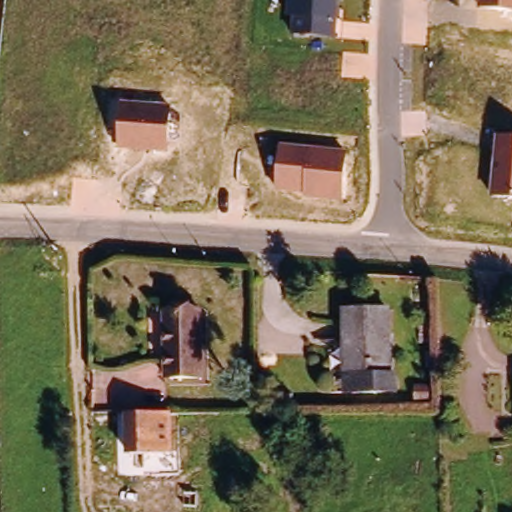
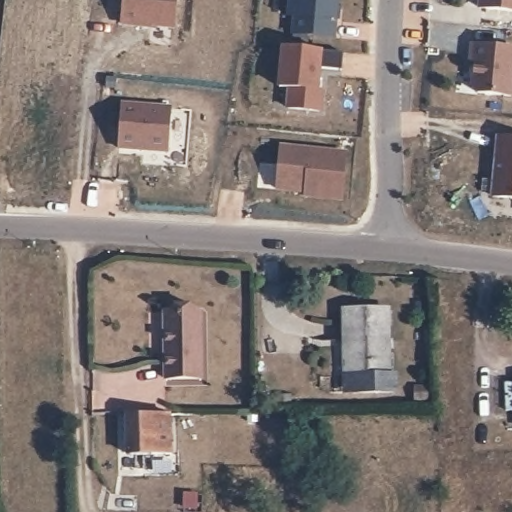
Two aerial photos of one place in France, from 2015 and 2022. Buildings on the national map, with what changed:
new [(176,30),(121,25),(124,0),(179,0),(176,30)]
unchanged [(336,37),(291,32),(293,15),(286,14),(288,0),(339,0),(336,37)]
unchanged [(476,8),(477,0),(512,0),(512,11),(476,8)]
new [(512,49),(512,96),(473,93),(475,64),(468,62),(471,44),(512,49)]
new [(324,51),(341,52),(339,69),(323,68),(321,90),(326,90),(324,111),(285,110),(284,88),(278,87),(283,48),(324,51)]
unchanged [(168,152),(115,147),(120,100),(171,105),(168,152)]
unchanged [(491,199),(494,135),(512,136),(512,201),(491,199)]
unchanged [(344,203),(303,197),(303,193),(274,190),(279,144),(348,151),(344,203)]
unchanged [(159,309),(193,309),(195,376),(160,377),(159,309)]
unchanged [(341,357),(341,337),(341,310),(388,310),(388,372),(393,372),(393,387),(358,387),(358,372),(351,372),(341,372),(341,357)]
unchanged [(128,418),(170,418),(169,455),(128,455),(128,418)]

